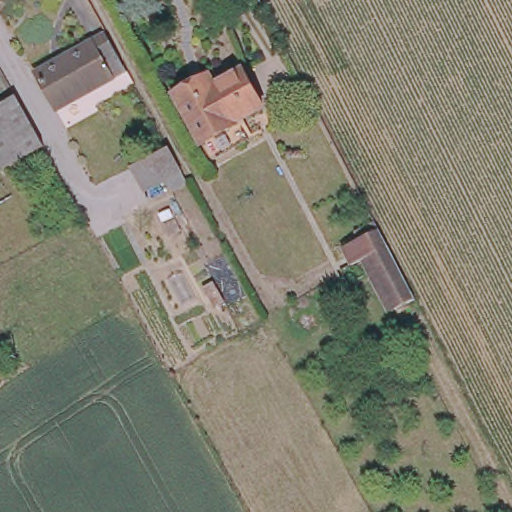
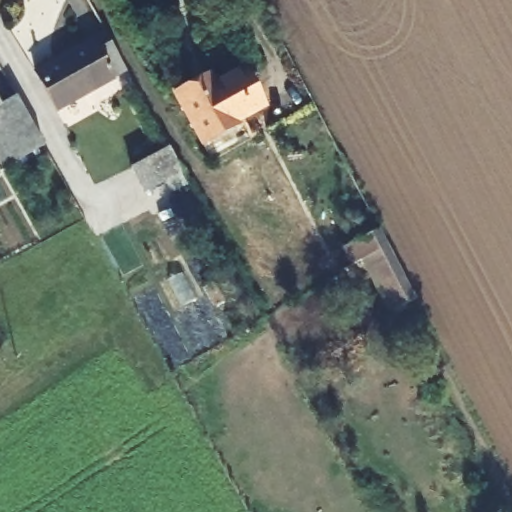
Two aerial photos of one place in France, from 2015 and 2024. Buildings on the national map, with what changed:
unchanged [(127,74),(54,114),(32,75),(106,35),(127,74)]
unchanged [(175,99),(198,87),(201,93),(245,69),(265,107),(234,124),(238,132),(202,151),(175,99)]
unchanged [(24,160),(0,118),(0,110),(16,100),(44,149),(24,160)]
unchanged [(145,191),(132,168),(170,147),(177,159),(183,170),(145,191)]
unchanged [(387,312),(356,254),(382,240),(412,299),(387,312)]

